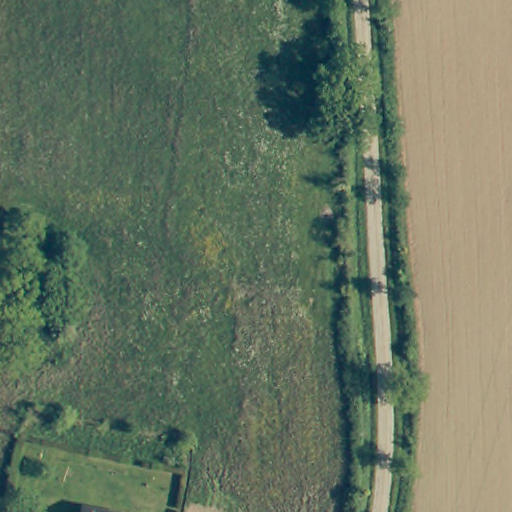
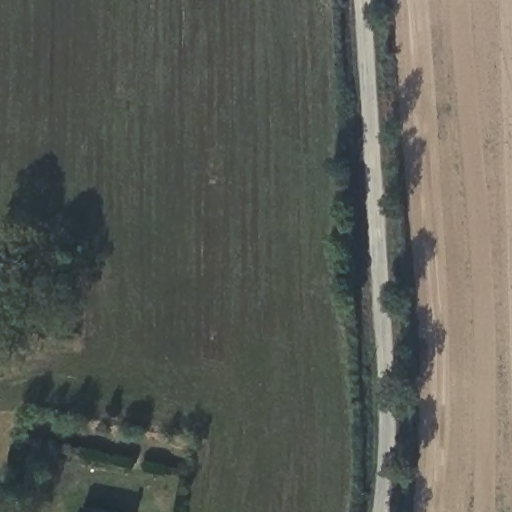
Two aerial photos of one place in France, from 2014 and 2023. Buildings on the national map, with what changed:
unchanged [(86,509),(105,512),(86,512),(86,509)]

